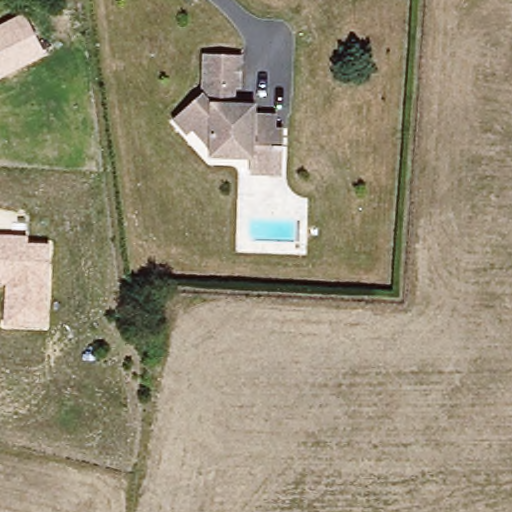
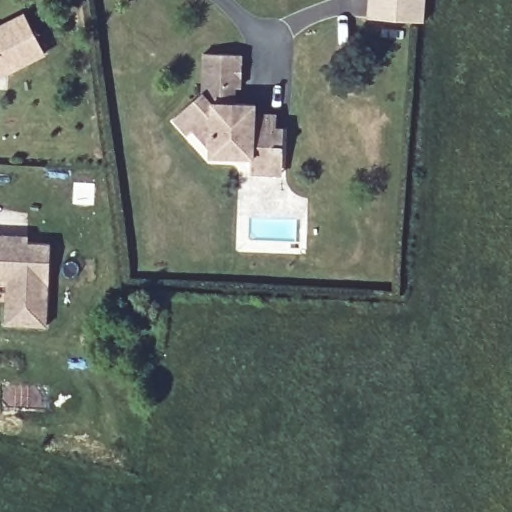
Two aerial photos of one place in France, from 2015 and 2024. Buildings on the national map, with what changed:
new [(374,0),(429,0),(428,20),(373,18),(374,0)]
unchanged [(45,55),(1,79),(0,79),(0,25),(23,14),(45,55)]
unchanged [(203,98),(203,70),(204,56),(243,58),(242,74),(240,99),(203,98)]
unchanged [(234,160),(233,152),(214,151),(195,134),(189,139),(177,123),(203,98),(203,107),(212,114),(257,115),(257,125),(279,126),(279,139),(286,139),(287,149),(257,149),(257,161),(234,160)]
unchanged [(28,244),(49,245),(46,326),(4,324),(6,285),(0,285),(0,235),(29,236),(28,244)]

